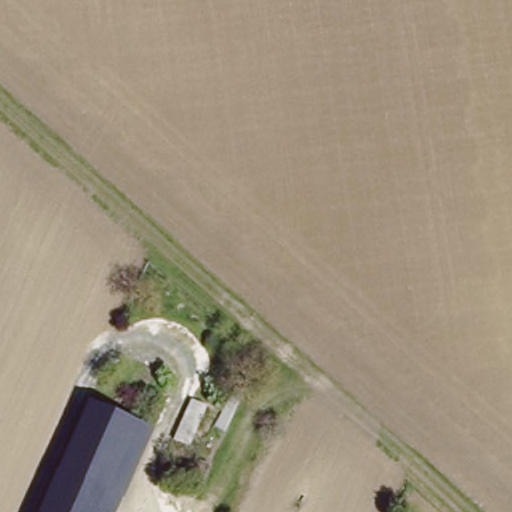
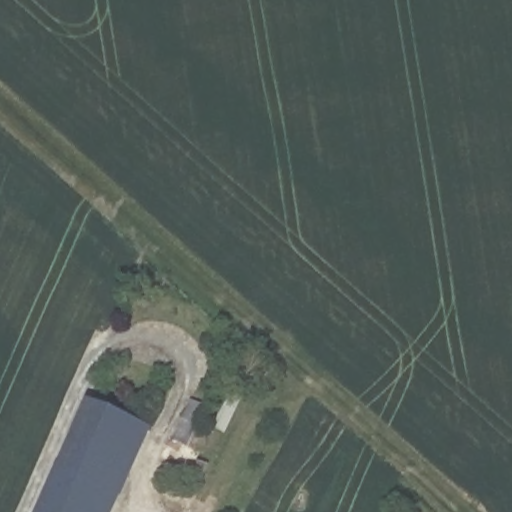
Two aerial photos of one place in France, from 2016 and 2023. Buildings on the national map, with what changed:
unchanged [(137,425),(153,432),(118,512),(45,512),(91,405),(137,425)]

